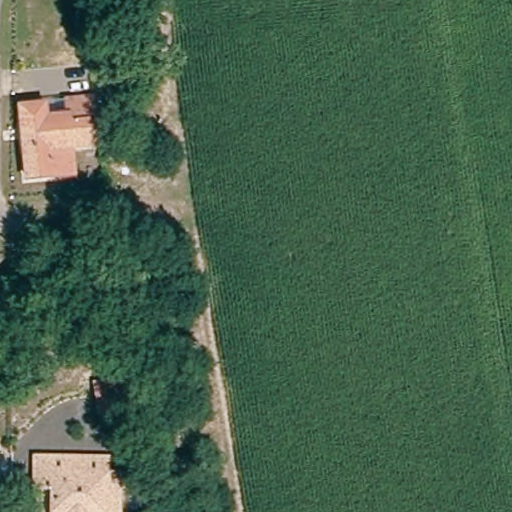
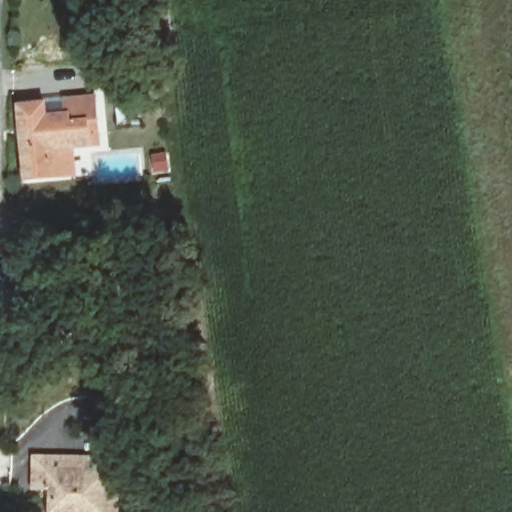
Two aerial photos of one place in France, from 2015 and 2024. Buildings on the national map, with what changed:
unchanged [(79,129),(81,149),(62,150),(65,179),(21,184),(15,111),(39,110),(39,120),(66,119),(65,108),(85,106),(88,127),(79,129)]
unchanged [(107,403),(77,407),(74,380),(104,376),(107,403)]
unchanged [(109,419),(101,423),(96,412),(104,408),(109,419)]
unchanged [(42,496),(38,493),(23,493),(23,463),(69,462),(96,461),(97,476),(106,476),(107,512),(43,512),(42,511),(42,496)]

